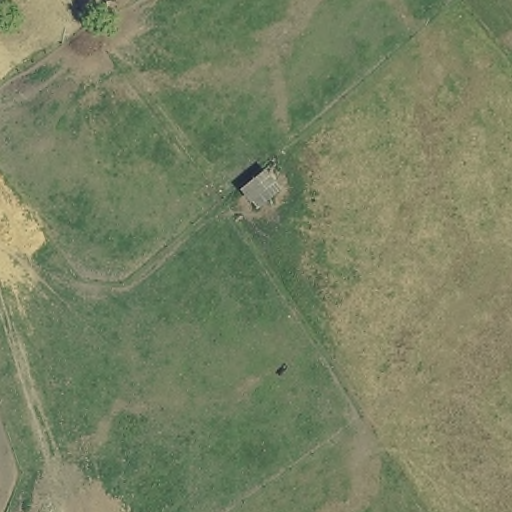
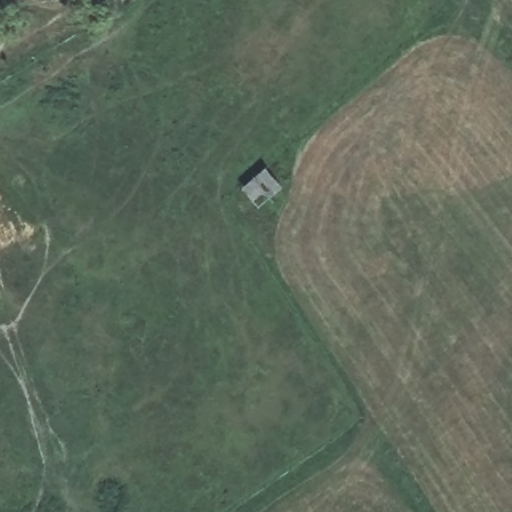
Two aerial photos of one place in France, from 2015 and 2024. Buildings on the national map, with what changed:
unchanged [(33,507),(37,512),(25,512),(33,507)]

